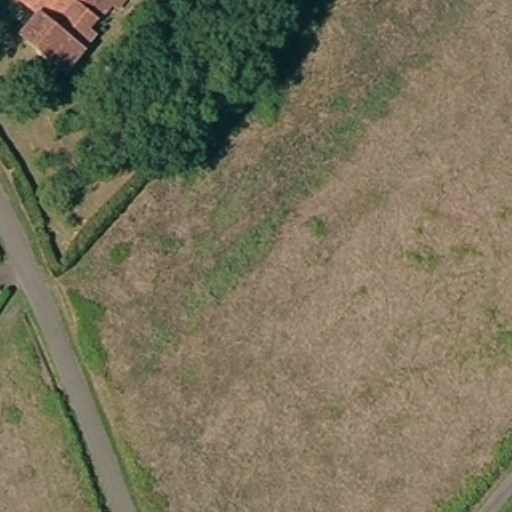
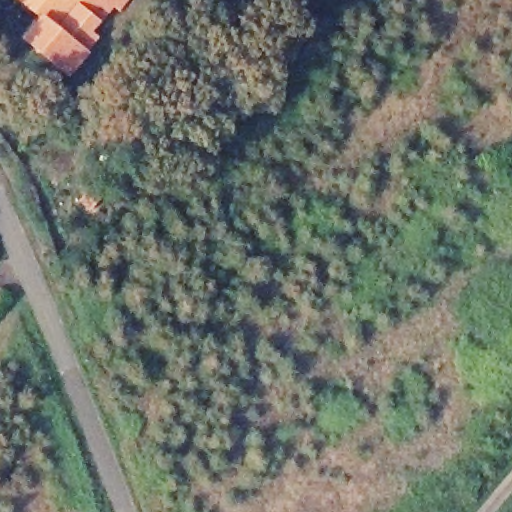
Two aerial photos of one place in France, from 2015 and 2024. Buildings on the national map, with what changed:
unchanged [(91,44),(62,77),(21,40),(37,19),(19,0),(114,0),(85,35),(91,44)]

